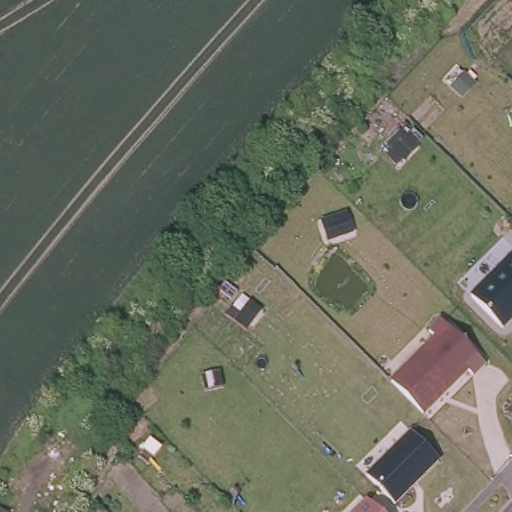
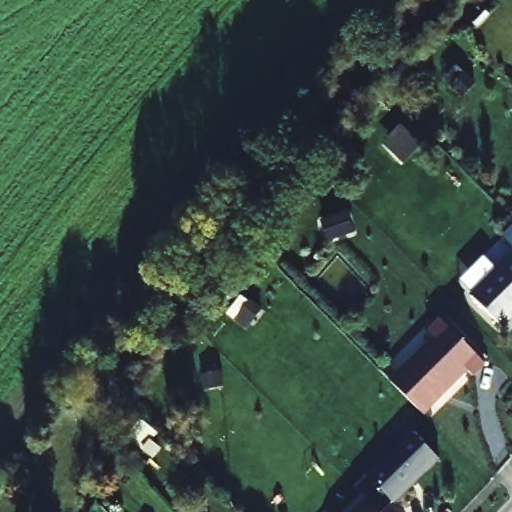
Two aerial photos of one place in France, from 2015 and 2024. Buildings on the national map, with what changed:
unchanged [(322,221),(348,211),(355,232),(328,240),(322,221)]
unchanged [(502,330),(472,298),(512,261),(512,321),(502,330)]
unchanged [(390,378),(436,335),(430,329),(442,317),(485,363),(472,375),(467,368),(420,411),(390,378)]
unchanged [(441,460),(395,504),(366,475),(410,431),(441,460)]
unchanged [(379,512),(354,512),(367,500),(379,512)]
unchanged [(3,512),(0,512),(0,510),(3,512)]

